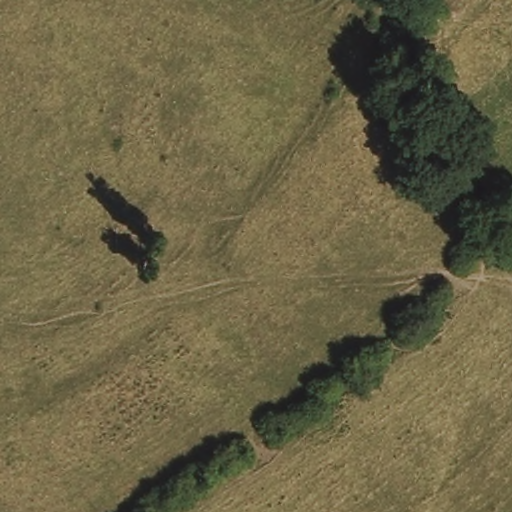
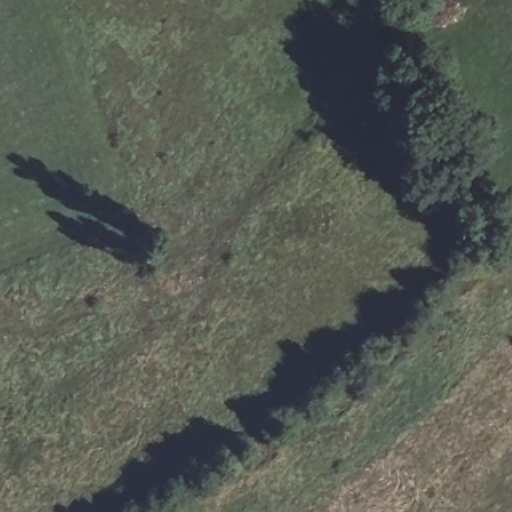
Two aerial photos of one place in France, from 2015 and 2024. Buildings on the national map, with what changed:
[]

